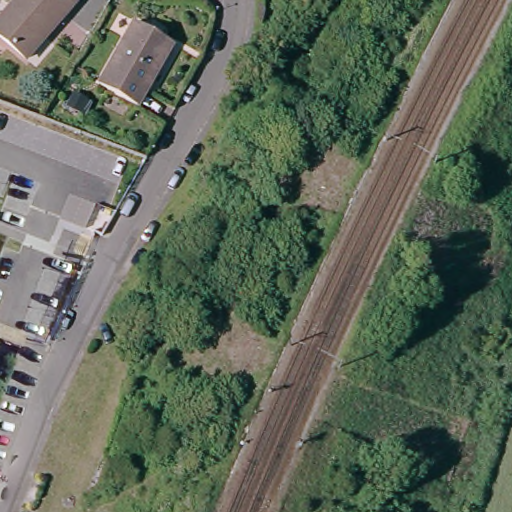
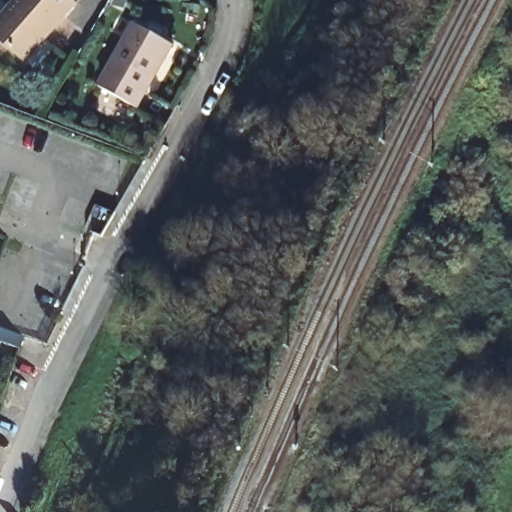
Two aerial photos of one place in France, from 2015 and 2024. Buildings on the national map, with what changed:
unchanged [(0,42),(0,14),(13,0),(69,0),(67,1),(72,4),(20,60),(0,42)]
unchanged [(133,105),(97,82),(134,19),(172,41),(133,105)]
unchanged [(17,352),(0,346),(0,331),(22,338),(17,352)]

